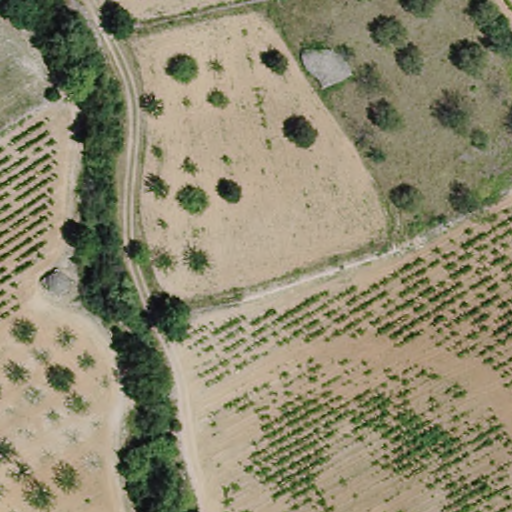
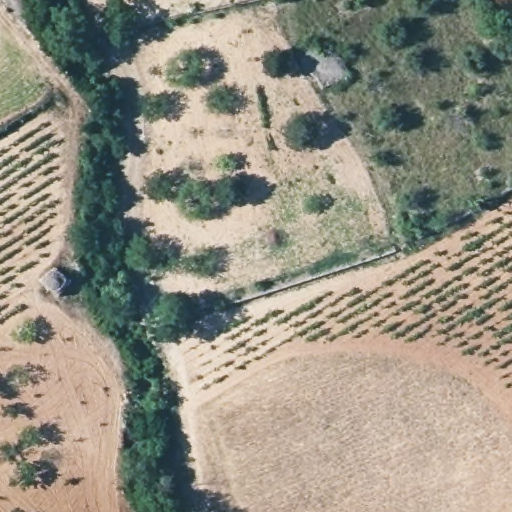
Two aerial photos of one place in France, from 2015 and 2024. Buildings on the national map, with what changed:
unchanged [(54,274),(70,288),(58,303),(40,288),(54,274)]

